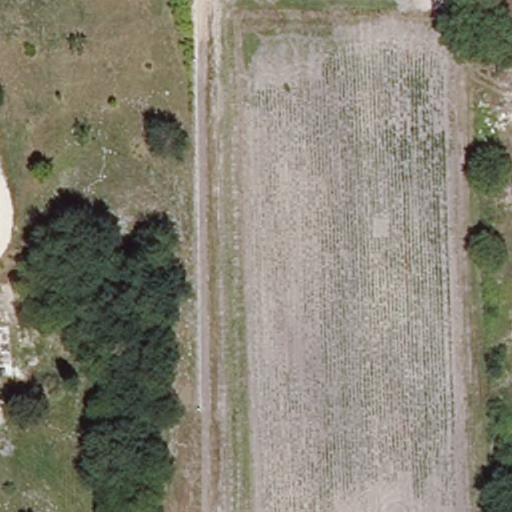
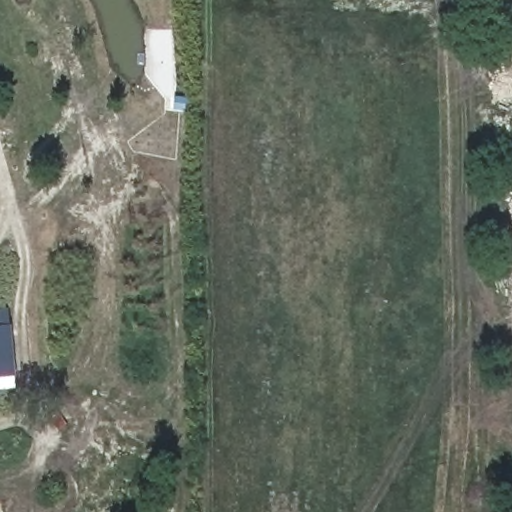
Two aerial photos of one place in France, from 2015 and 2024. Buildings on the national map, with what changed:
new [(16,388),(0,389),(0,310),(9,310),(16,388)]

